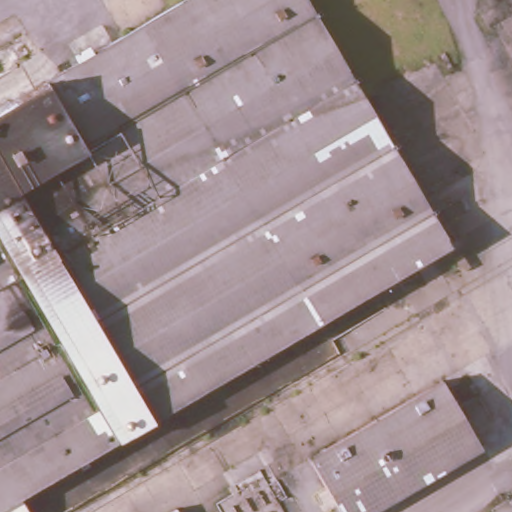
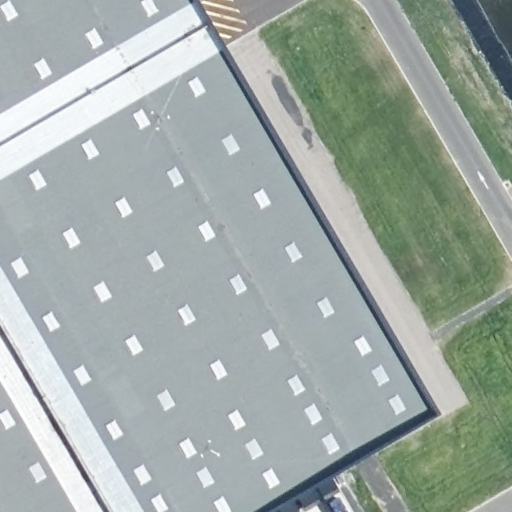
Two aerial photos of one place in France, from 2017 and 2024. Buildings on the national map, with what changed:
new [(268,512),(0,512),(0,0),(185,0),(428,419),(268,512)]
demolished [(170,0),(305,0),(449,251),(320,326),(183,87),(142,17),(170,0)]
demolished [(183,87),(0,192),(0,98),(142,17),(183,87)]
demolished [(320,326),(25,498),(1,512),(0,512),(0,192),(183,87),(320,326)]
demolished [(477,441),(355,512),(345,512),(311,453),(439,377),(477,441)]
demolished [(25,498),(33,512),(1,512),(25,498)]
demolished [(172,505),(176,512),(160,512),(172,505)]

